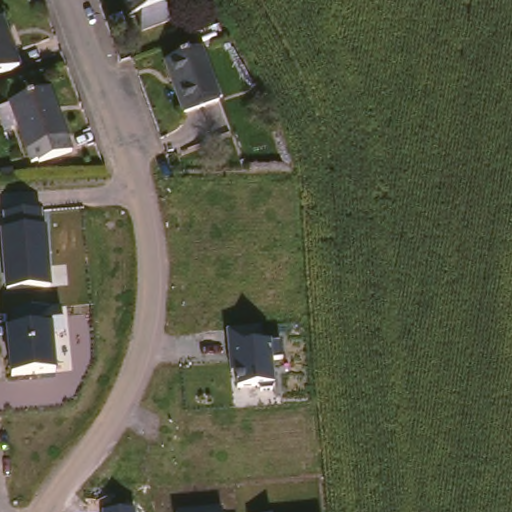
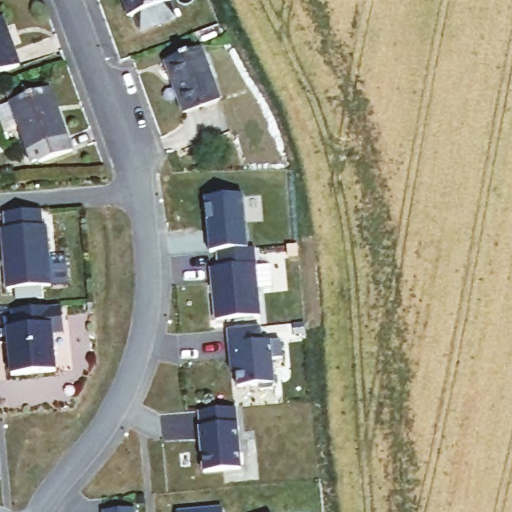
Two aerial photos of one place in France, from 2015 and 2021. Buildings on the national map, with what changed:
unchanged [(176,7),(141,20),(136,4),(132,6),(130,0),(174,0),(176,7)]
unchanged [(25,62),(0,71),(0,15),(6,12),(25,62)]
unchanged [(225,93),(190,107),(170,57),(206,44),(225,93)]
unchanged [(74,137),(35,151),(17,102),(56,88),(74,137)]
new [(241,197),(246,252),(216,255),(215,238),(207,239),(204,201),(241,197)]
unchanged [(0,229),(5,229),(4,212),(41,209),(42,226),(47,226),(51,286),(5,287),(0,229)]
new [(218,270),(216,255),(246,252),(252,251),(258,318),(215,323),(210,271),(218,270)]
unchanged [(7,327),(20,325),(19,309),(62,306),(65,333),(54,335),(56,372),(11,375),(7,327)]
unchanged [(236,371),(231,372),(228,328),(270,327),(271,342),(282,341),(283,359),(273,360),(275,388),(259,390),(258,385),(237,387),(236,371)]
new [(237,407),(243,471),(205,475),(201,427),(202,427),(200,410),(237,407)]
unchanged [(222,507),(223,512),(176,512),(176,511),(222,507)]
unchanged [(135,508),(136,512),(103,512),(103,511),(135,508)]

